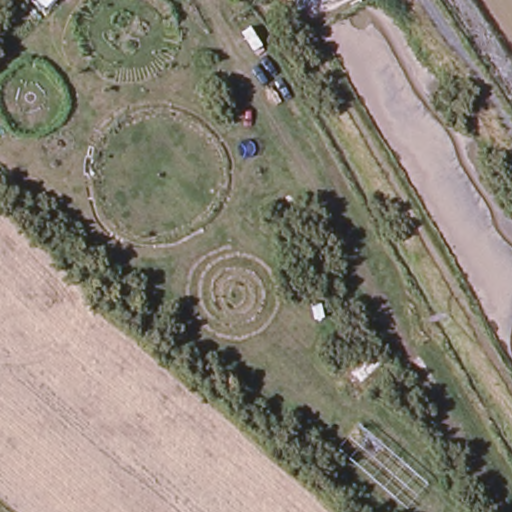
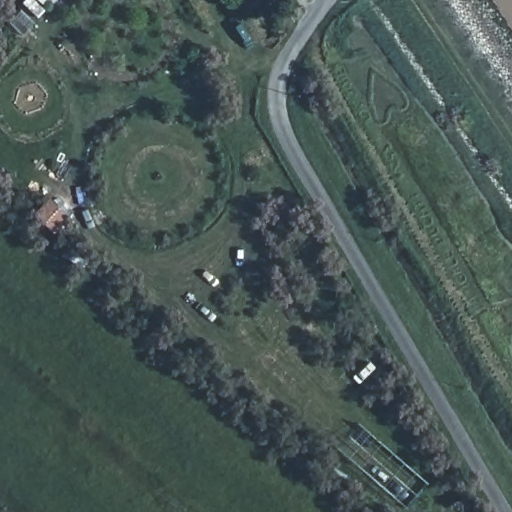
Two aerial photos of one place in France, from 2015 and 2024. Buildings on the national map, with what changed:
unchanged [(55,0),(45,13),(33,0),(55,0)]

